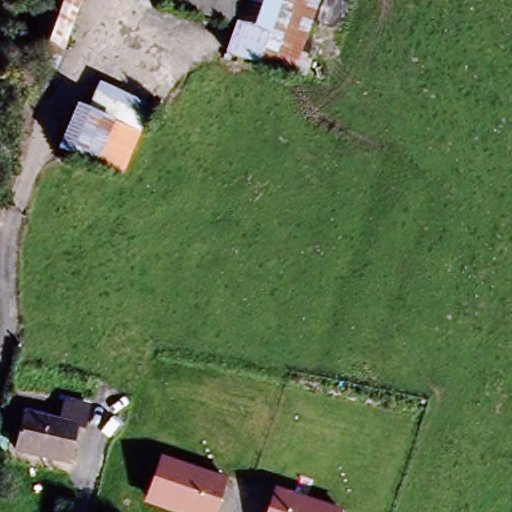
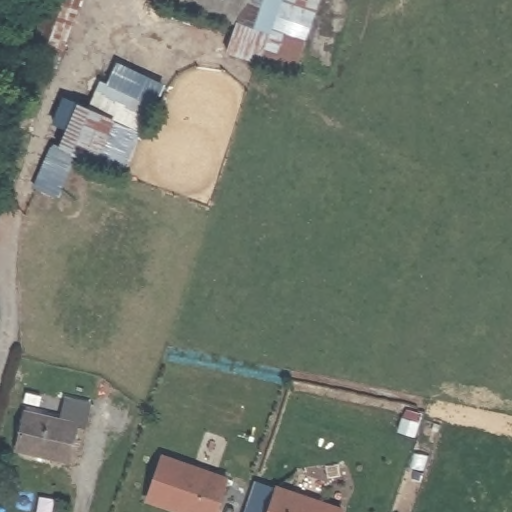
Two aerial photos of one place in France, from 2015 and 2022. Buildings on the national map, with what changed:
unchanged [(27,56),(48,0),(82,0),(56,67),(27,56)]
unchanged [(309,56),(302,78),(222,56),(228,25),(142,0),(313,0),(298,53),(309,56)]
unchanged [(73,157),(55,198),(35,186),(76,103),(89,108),(101,80),(153,104),(125,175),(73,157)]
unchanged [(57,419),(63,397),(86,403),(79,428),(74,428),(65,462),(14,449),(25,411),(57,419)]
unchanged [(162,454),(230,478),(216,512),(172,512),(144,502),(162,454)]
unchanged [(275,487),(344,511),(343,512),(266,512),(275,487)]

